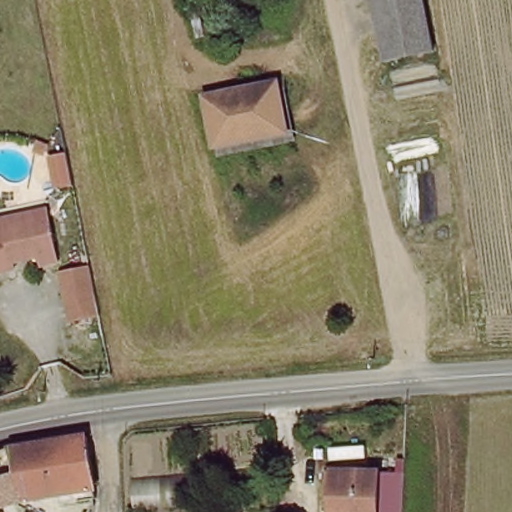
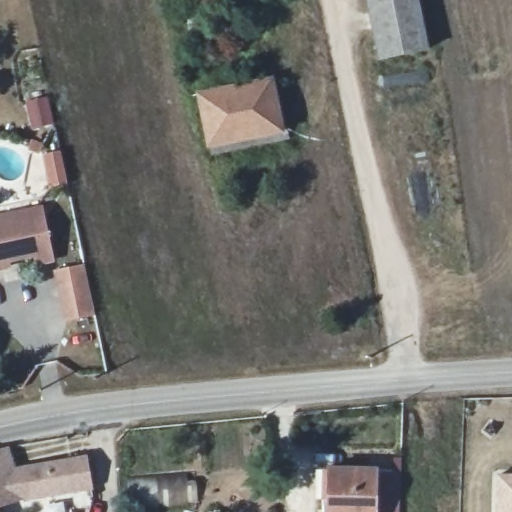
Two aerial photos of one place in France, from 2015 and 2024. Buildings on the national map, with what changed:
unchanged [(380,60),(367,0),(422,0),(433,48),(380,60)]
unchanged [(274,77),(283,124),(286,137),(213,152),(211,139),(201,92),(274,77)]
unchanged [(40,150),(56,146),(63,179),(46,182),(40,150)]
unchanged [(0,270),(0,219),(48,209),(58,260),(43,263),(40,254),(13,260),(15,267),(7,268),(0,270)]
unchanged [(65,325),(55,276),(85,270),(95,318),(65,325)]
unchanged [(84,437),(93,492),(94,501),(56,507),(54,498),(25,503),(28,512),(0,512),(0,453),(8,451),(84,437)]
unchanged [(329,474),(403,470),(402,512),(331,512),(329,474)]
new [(512,474),(512,512),(496,512),(497,474),(512,474)]

